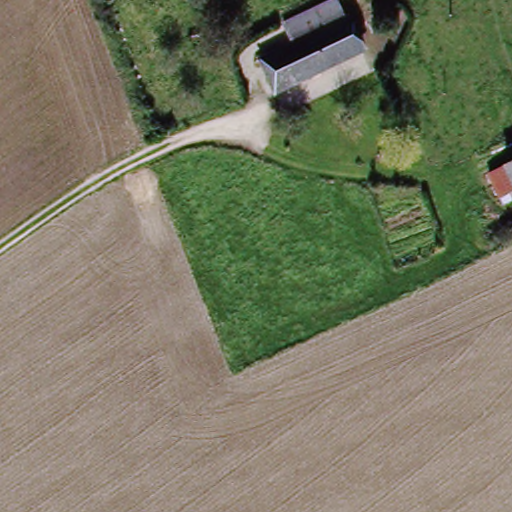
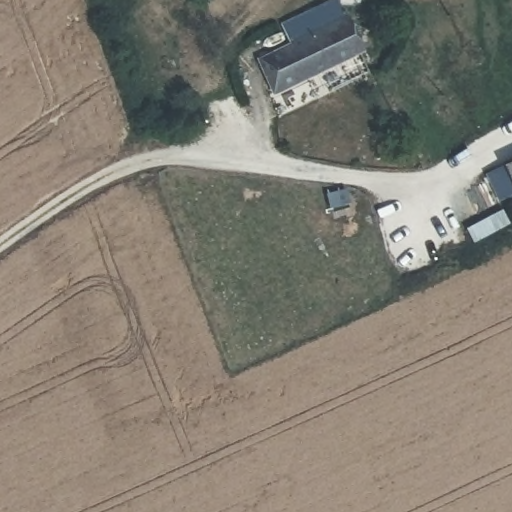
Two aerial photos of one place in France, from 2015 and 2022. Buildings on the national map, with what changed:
unchanged [(279,88),(263,57),(298,40),(290,22),(313,12),(335,2),(342,19),(357,51),(279,88)]
unchanged [(498,162),(512,156),(512,193),(510,188),(495,195),(482,169),(498,162)]

